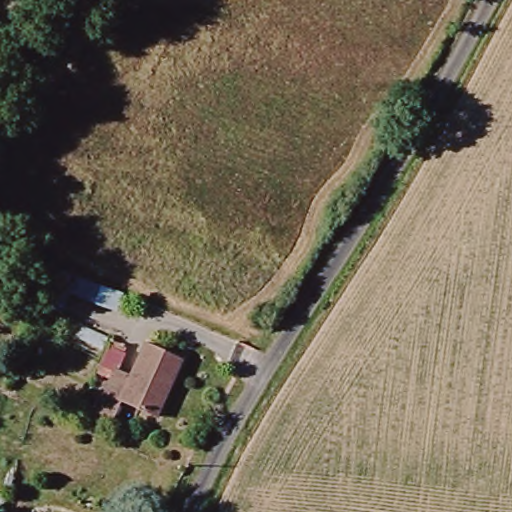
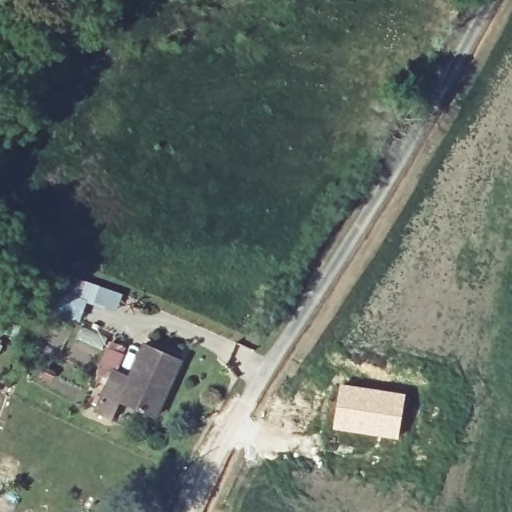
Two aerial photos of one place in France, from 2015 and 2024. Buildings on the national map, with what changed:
unchanged [(103,289),(95,308),(44,287),(51,272),(103,289)]
unchanged [(99,415),(112,385),(99,380),(114,340),(129,345),(118,382),(131,388),(146,351),(181,365),(159,418),(123,405),(116,422),(99,415)]
new [(339,383),(406,393),(398,439),(332,429),(339,383)]

